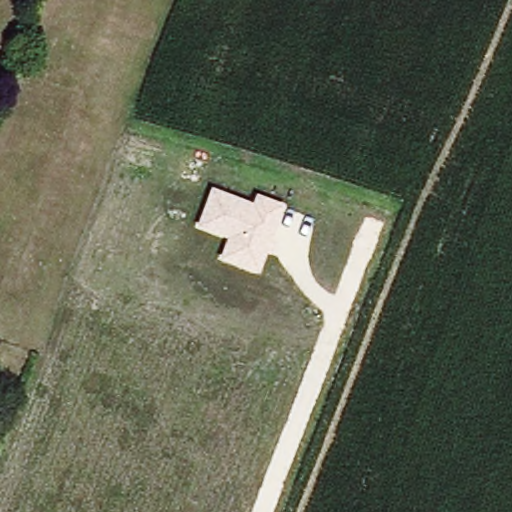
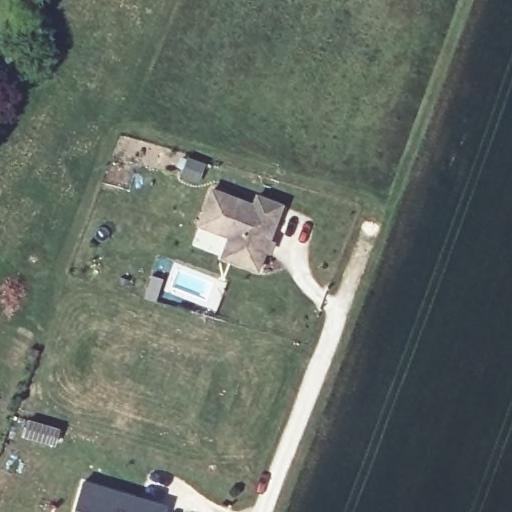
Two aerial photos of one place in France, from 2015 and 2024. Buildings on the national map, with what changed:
unchanged [(283,204),(258,272),(219,257),(226,237),(196,227),(210,187),(252,202),(256,194),(283,204)]
new [(166,505),(164,512),(76,512),(84,481),(166,505)]

